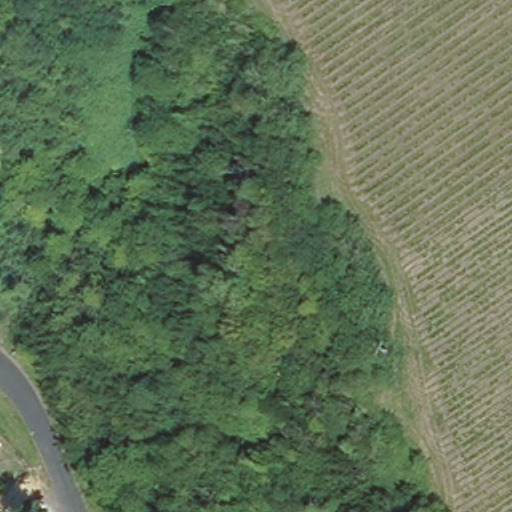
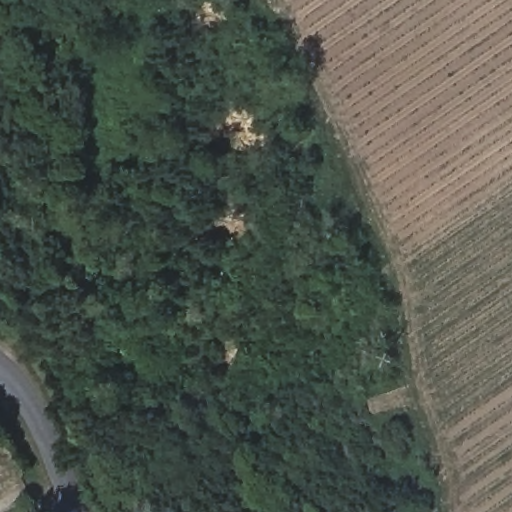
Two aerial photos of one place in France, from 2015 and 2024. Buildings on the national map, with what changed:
[]

